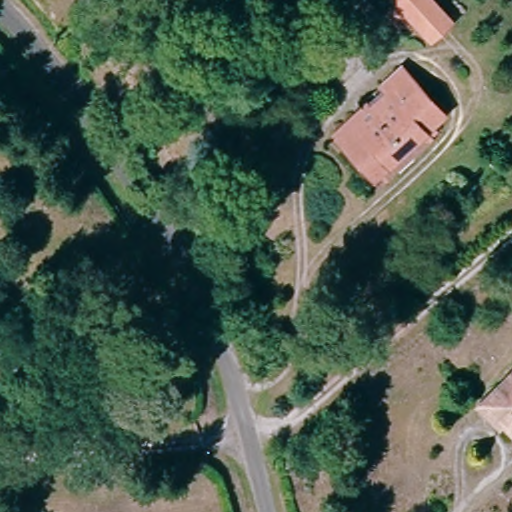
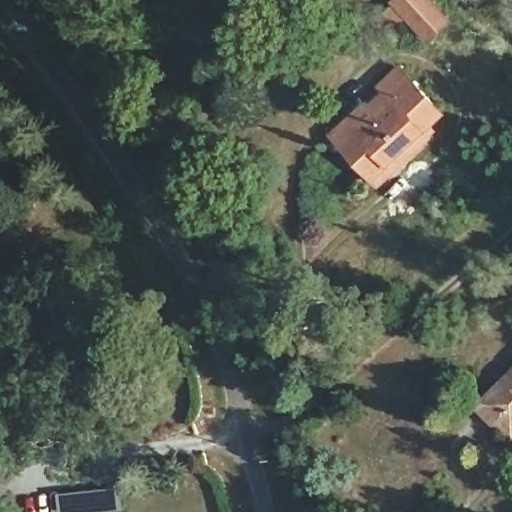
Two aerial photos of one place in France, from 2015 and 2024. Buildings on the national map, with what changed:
unchanged [(407,11),(409,10),(400,0),(433,0),(459,30),(439,47),(419,25),(409,34),(398,21),(408,12),(407,11)]
unchanged [(380,183),(337,139),(362,112),(378,126),(399,105),(387,90),(408,70),(450,116),(380,183)]
unchanged [(498,431),(490,422),(478,409),(512,378),(512,432),(505,425),(498,431)]
new [(118,486),(120,510),(107,512),(60,512),(58,495),(118,486)]

